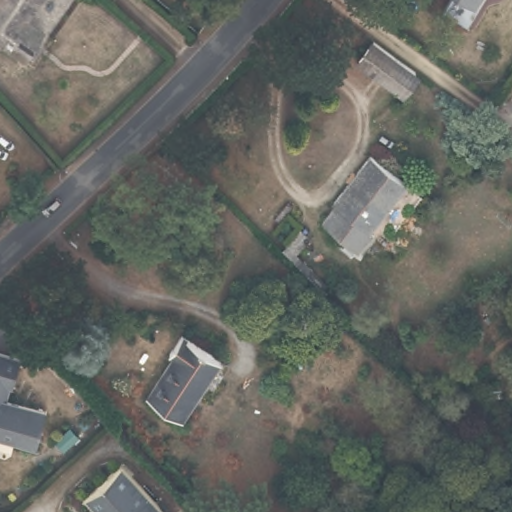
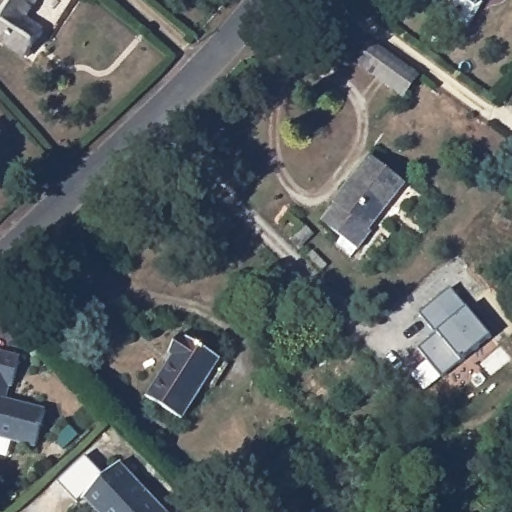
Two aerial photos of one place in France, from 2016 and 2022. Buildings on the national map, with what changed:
unchanged [(50,34),(49,35),(31,58),(0,38),(0,0),(73,0),(50,34)]
unchanged [(463,37),(436,20),(446,0),(490,0),(463,37)]
unchanged [(404,100),(357,69),(373,46),(420,76),(404,100)]
unchanged [(401,186),(370,235),(373,242),(362,257),(322,231),(332,215),(326,211),(360,160),(401,186)]
new [(460,362),(441,377),(418,349),(438,333),(420,313),(449,287),(467,307),(491,338),(460,362)]
unchanged [(223,359),(184,421),(146,396),(173,354),(168,351),(180,331),(223,359)]
unchanged [(16,357),(10,386),(6,385),(3,399),(45,409),(36,444),(0,434),(0,353),(16,357)]
unchanged [(95,512),(82,501),(113,466),(163,512),(95,512)]

